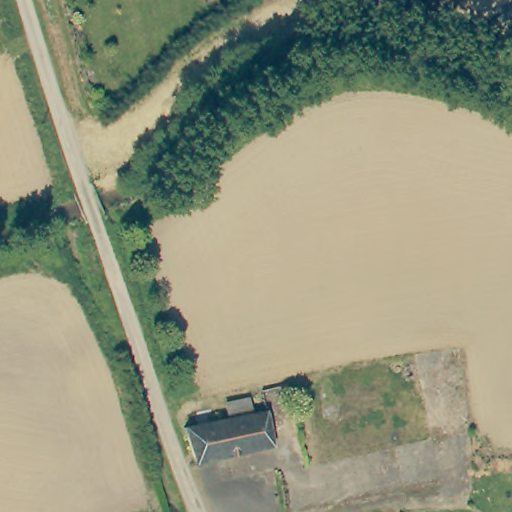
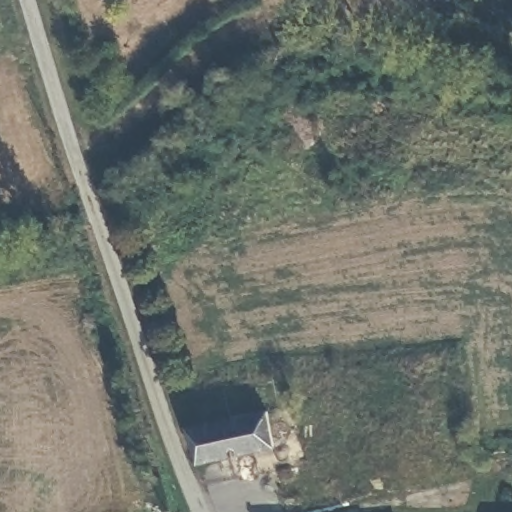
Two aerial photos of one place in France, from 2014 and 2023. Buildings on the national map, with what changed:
unchanged [(230,419),(227,406),(248,400),(252,414),(267,410),(276,447),(198,467),(188,430),(230,419)]

